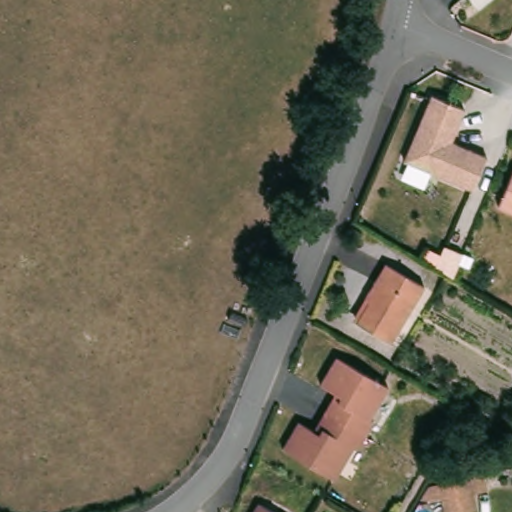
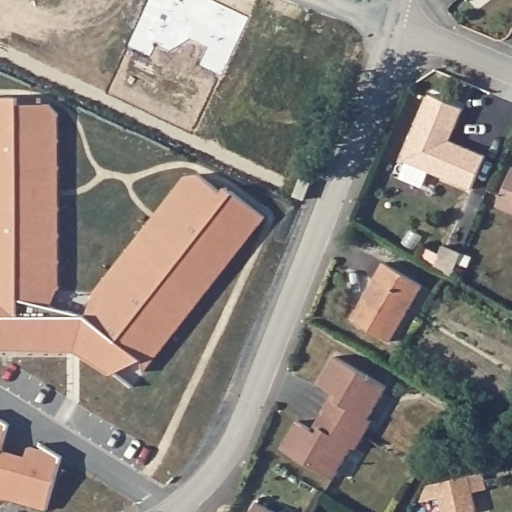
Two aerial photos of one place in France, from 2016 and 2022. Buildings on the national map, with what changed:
unchanged [(465,105),(451,137),(487,152),(473,186),(405,156),(432,91),(465,105)]
new [(77,352),(0,350),(0,97),(20,97),(20,105),(51,104),(60,114),(60,286),(51,307),(89,316),(95,292),(185,177),(200,175),(223,192),(227,187),(267,217),(146,371),(140,360),(110,374),(77,352)]
unchanged [(512,177),(512,215),(499,210),(512,177)]
unchanged [(466,248),(456,271),(439,262),(448,241),(466,248)]
unchanged [(384,263),(425,287),(392,344),(357,325),(370,302),(364,298),(384,263)]
unchanged [(320,382),(335,355),(388,385),(368,417),(375,422),(367,435),(359,449),(352,445),(333,477),(281,447),(296,420),(317,432),(328,412),(340,393),(320,382)]
new [(10,421),(5,445),(31,452),(34,443),(45,446),(46,441),(64,453),(52,500),(51,506),(11,495),(0,492),(0,413),(10,421)]
unchanged [(474,512),(441,512),(438,499),(415,504),(425,487),(467,478),(474,512)]
unchanged [(275,512),(255,512),(260,503),(275,512)]

